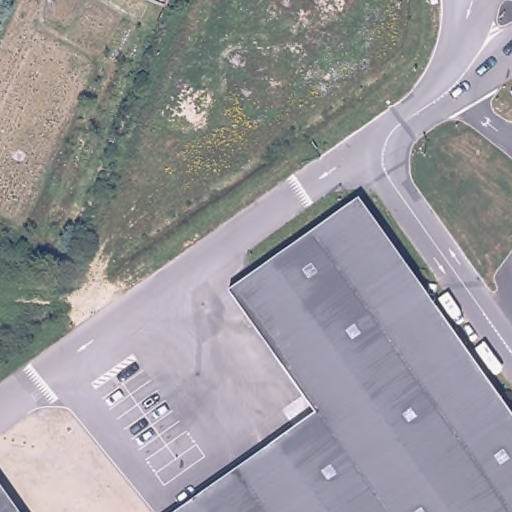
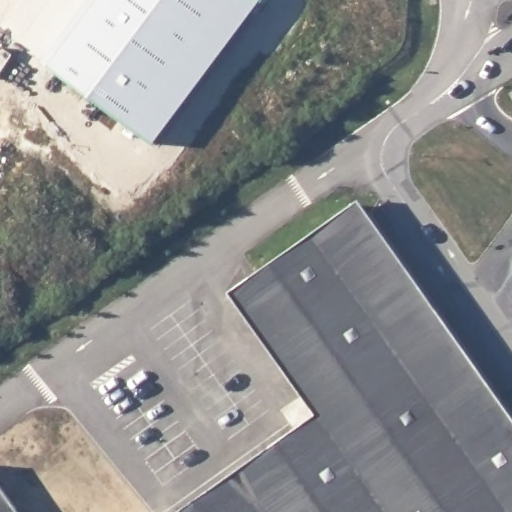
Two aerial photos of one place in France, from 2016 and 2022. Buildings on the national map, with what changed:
new [(260,0),(153,145),(41,61),(86,0),(260,0)]
unchanged [(318,412),(228,290),(353,201),(512,418),(512,512),(180,512),(318,412)]
unchanged [(0,483),(22,512),(0,512),(0,483)]

